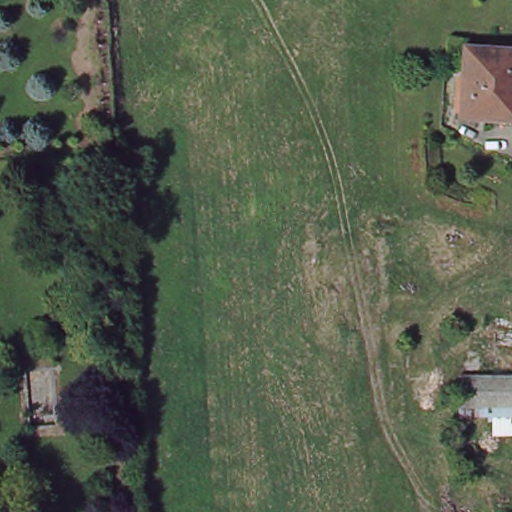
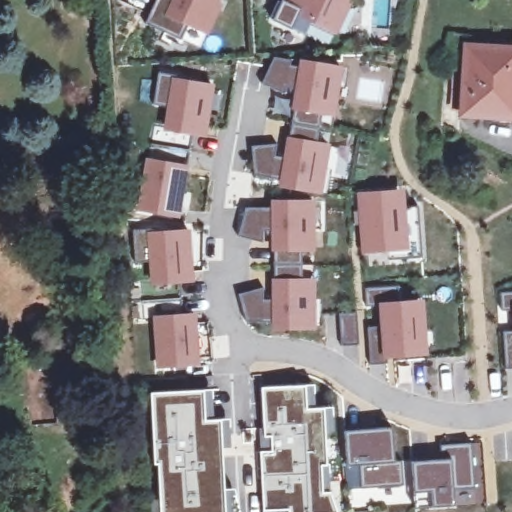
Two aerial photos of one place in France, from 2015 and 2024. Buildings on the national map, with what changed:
new [(144,24),(156,0),(218,0),(217,2),(221,5),(207,35),(187,26),(180,41),(144,24)]
new [(280,3),(281,0),(349,0),(347,4),(350,5),(337,35),(312,23),(306,37),(273,21),(280,3)]
unchanged [(505,116),(462,113),(467,45),(512,47),(512,116),(505,116)]
new [(277,144),(275,156),(282,157),(292,88),(285,87),(283,92),(264,82),(272,58),(290,62),(289,67),(297,67),(299,61),(341,67),(332,116),(317,115),(314,140),(328,143),(320,194),(277,186),(277,178),(255,173),(252,148),(277,144)]
new [(163,125),(167,106),(154,103),(159,73),(215,84),(204,137),(184,133),(180,165),(188,166),(178,217),(135,207),(145,157),(150,123),(163,125)]
new [(403,189),(407,251),(360,253),(355,194),(403,189)]
new [(261,289),(263,301),(271,301),(270,229),(260,230),(258,238),(239,232),(247,208),(271,208),(270,199),(314,200),(315,251),(301,251),(301,278),(313,277),(314,330),(271,329),(270,320),(247,320),(238,295),(261,289)]
new [(189,229),(192,281),(150,286),(148,261),(135,263),(133,230),(189,229)]
new [(380,326),(377,302),(365,305),(365,289),(399,287),(398,302),(422,299),(427,354),(385,359),(387,364),(369,365),(365,328),(380,326)]
new [(512,292),(512,309),(502,309),(502,293),(512,292)]
new [(195,314),(200,366),(156,371),(152,316),(195,314)]
demolished [(487,340),(487,323),(512,323),(512,340),(487,340)]
new [(504,366),(502,329),(512,329),(512,366),(504,366)]
demolished [(462,403),(462,376),(512,376),(512,402),(462,403)]
new [(305,410),(323,409),(325,464),(319,465),(320,493),(328,493),(336,512),(286,512),(285,511),(263,512),(259,451),(271,451),(270,436),(262,436),(259,388),(303,385),(305,410)]
new [(205,422),(220,421),(225,512),(161,512),(160,465),(154,465),(151,393),(203,390),(205,422)]
new [(392,429),(394,460),(400,459),(401,484),(361,487),(359,465),(347,465),(345,432),(392,429)]
new [(440,464),(440,448),(467,445),(471,485),(450,486),(451,503),(432,505),(414,507),(415,490),(414,463),(440,464)]

